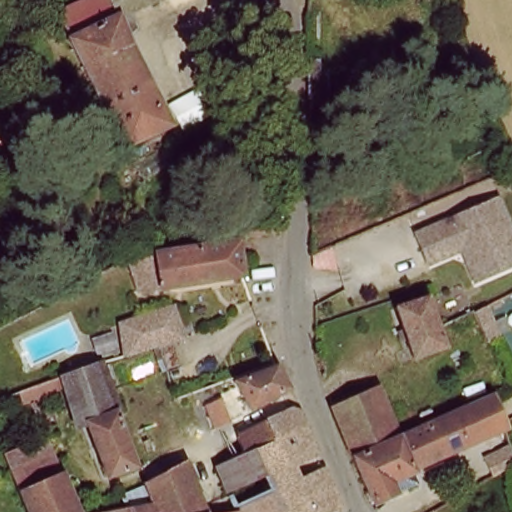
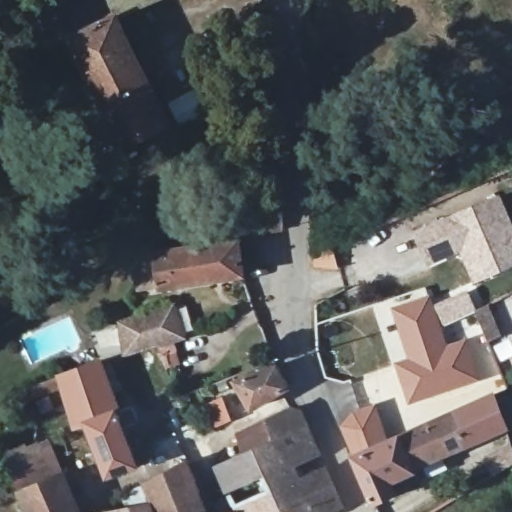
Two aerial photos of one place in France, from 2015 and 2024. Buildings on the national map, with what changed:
unchanged [(117,17),(137,55),(106,68),(100,57),(95,59),(83,64),(64,26),(57,13),(69,8),(85,0),(151,0),(117,17)]
unchanged [(95,59),(100,57),(106,68),(137,55),(173,124),(125,148),(107,111),(83,64),(95,59)]
unchanged [(432,265),(419,236),(501,199),(512,224),(512,268),(488,278),(479,282),(466,250),(432,265)]
unchanged [(241,207),(283,200),(284,235),(245,242),(241,207)]
unchanged [(142,300),(134,264),(139,261),(239,241),(244,275),(142,300)]
unchanged [(450,350),(414,363),(395,310),(431,300),(441,326),(450,350)]
unchanged [(154,374),(146,354),(145,351),(125,358),(120,327),(171,315),(180,340),(170,344),(178,368),(156,378),(154,374)]
new [(450,350),(469,344),(483,386),(411,410),(397,368),(414,363),(450,350)]
unchanged [(119,429),(135,476),(118,482),(98,429),(89,432),(69,398),(18,414),(12,398),(19,395),(43,388),(66,380),(101,369),(105,368),(118,405),(125,427),(119,429)]
unchanged [(287,392),(247,411),(235,384),(277,369),(287,392)]
unchanged [(346,427),(338,408),(384,387),(406,433),(365,453),(358,456),(346,427)]
unchanged [(421,426),(432,421),(492,393),(505,419),(507,425),(419,468),(422,480),(377,501),(372,489),(358,456),(365,453),(406,433),(421,426)]
unchanged [(151,512),(149,506),(142,486),(186,466),(192,480),(248,454),(241,436),(295,410),(302,425),(268,439),(278,468),(267,473),(260,477),(270,496),(214,512),(151,512)]
unchanged [(339,509),(330,512),(278,512),(276,509),(270,496),(260,477),(267,473),(278,468),(268,439),(302,425),(311,445),(339,509)]
unchanged [(21,512),(14,494),(7,477),(0,461),(0,457),(34,451),(48,450),(56,474),(71,505),(74,512),(21,512)]
unchanged [(276,509),(278,512),(214,512),(270,496),(276,509)]

